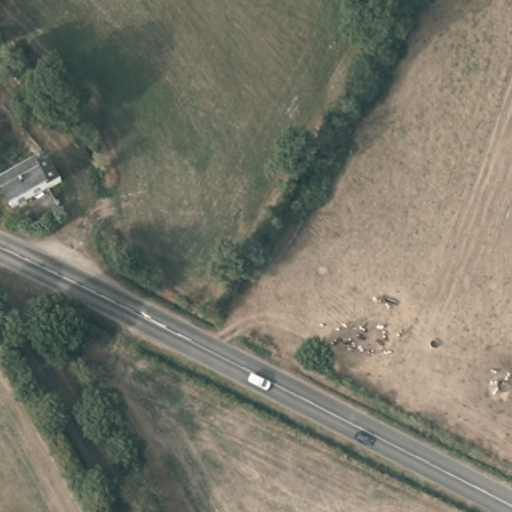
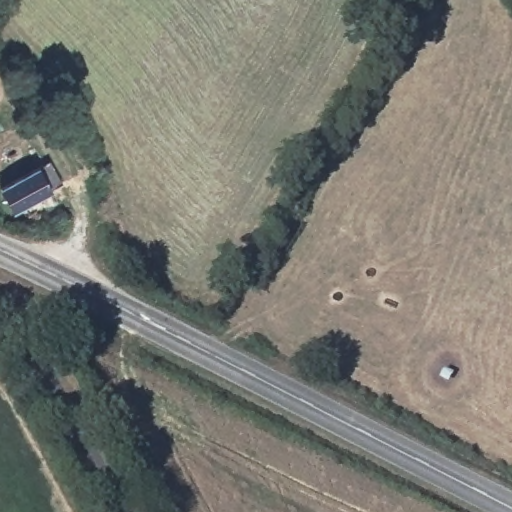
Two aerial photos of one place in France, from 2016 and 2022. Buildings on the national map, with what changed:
unchanged [(64,186),(15,212),(2,190),(53,162),(64,186)]

